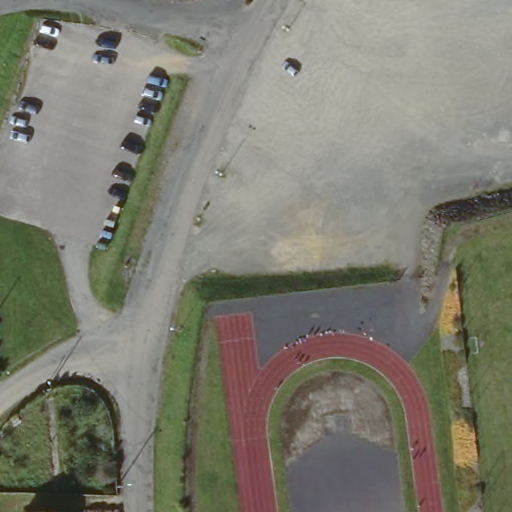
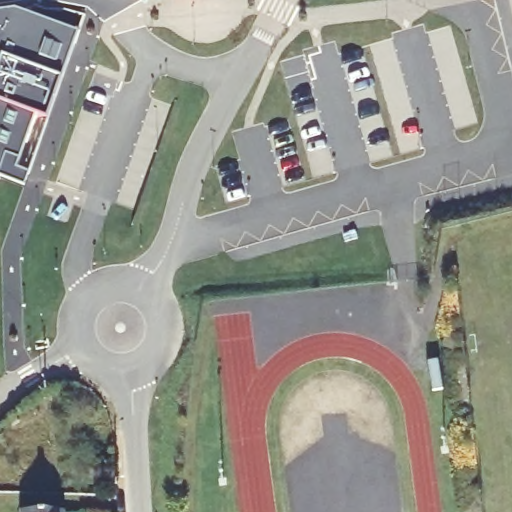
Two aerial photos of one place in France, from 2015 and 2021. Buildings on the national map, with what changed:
unchanged [(198,0),(181,2),(179,2),(179,0),(204,0),(198,0)]
new [(18,8),(81,31),(24,189),(0,180),(0,12),(18,8)]

